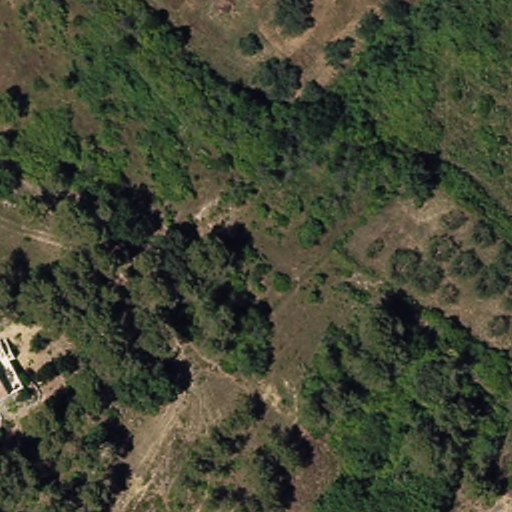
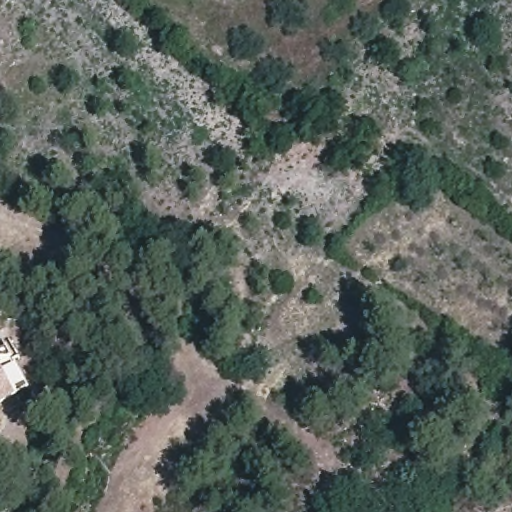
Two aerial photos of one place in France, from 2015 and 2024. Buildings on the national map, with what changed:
unchanged [(28,377),(0,398),(0,340),(1,339),(28,377)]

